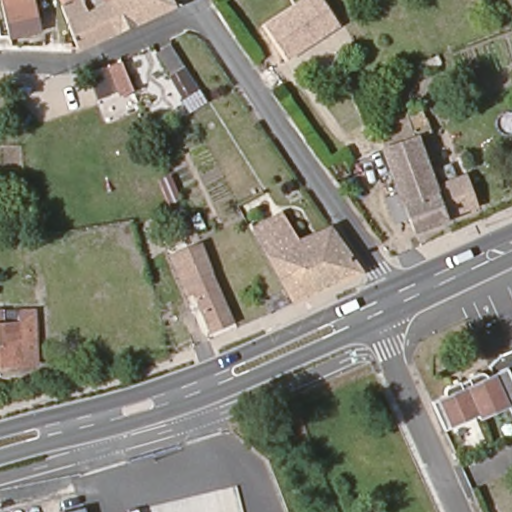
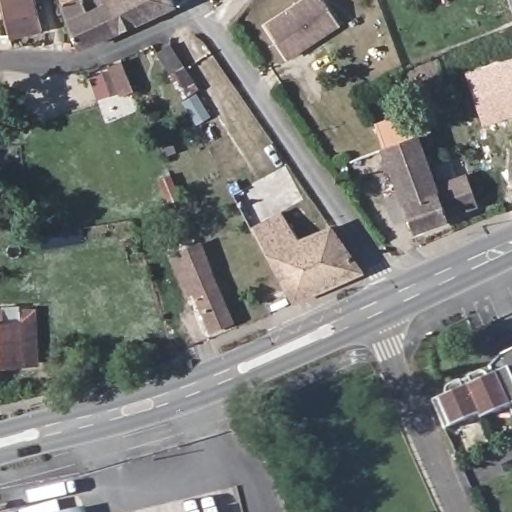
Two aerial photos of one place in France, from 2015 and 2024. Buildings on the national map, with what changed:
unchanged [(42,28),(7,36),(2,0),(38,0),(42,28)]
unchanged [(88,13),(106,5),(121,31),(77,49),(65,22),(72,18),(65,0),(82,0),(88,13)]
unchanged [(147,21),(121,31),(106,5),(88,13),(82,0),(138,0),(147,21)]
unchanged [(178,8),(147,21),(138,0),(173,0),(178,8)]
unchanged [(340,22),(288,57),(267,26),(307,0),(326,0),(340,22)]
unchanged [(198,85),(180,95),(179,93),(155,50),(172,39),(198,85)]
new [(465,72),(512,57),(512,117),(482,127),(465,72)]
unchanged [(141,89),(129,94),(117,65),(130,60),(141,89)]
unchanged [(181,98),(200,88),(205,99),(187,108),(181,98)]
unchanged [(467,183),(478,211),(451,221),(452,224),(416,237),(410,223),(397,229),(388,205),(402,200),(386,157),(388,156),(380,131),(410,120),(414,130),(428,124),(434,137),(421,142),(440,193),(467,183)]
unchanged [(176,174),(187,198),(175,203),(165,178),(176,174)]
unchanged [(266,257),(255,238),(255,236),(251,230),(280,215),(287,225),(298,242),(321,287),(292,300),(270,256),(266,257)]
unchanged [(311,235),(329,226),(338,240),(359,271),(321,287),(298,242),(311,235)]
unchanged [(235,322),(214,331),(197,291),(189,295),(174,258),(181,254),(206,244),(215,266),(213,267),(235,322)]
unchanged [(21,355),(21,364),(0,366),(0,311),(1,311),(2,322),(35,321),(37,354),(21,355)]
unchanged [(442,393),(443,386),(455,380),(456,382),(465,378),(465,376),(475,372),(480,372),(484,376),(490,372),(487,366),(498,353),(512,347),(512,416),(511,416),(506,405),(477,419),(475,414),(442,429),(429,400),(442,393)]
demolished [(154,512),(131,512),(120,482),(141,475),(154,512)]
unchanged [(80,512),(58,512),(57,510),(79,505),(80,512)]

